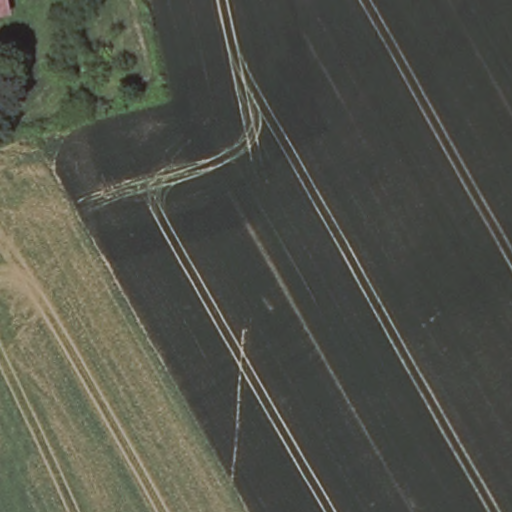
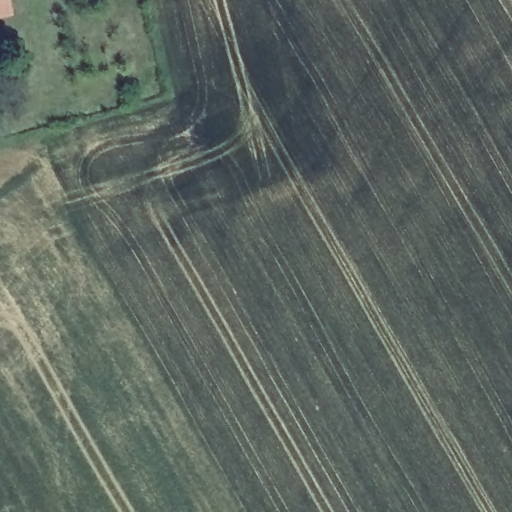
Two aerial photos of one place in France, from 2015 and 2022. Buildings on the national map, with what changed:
unchanged [(0,12),(0,0),(12,0),(14,10),(0,12)]

